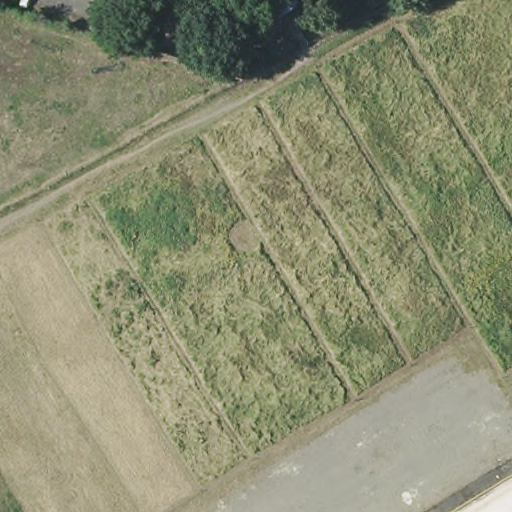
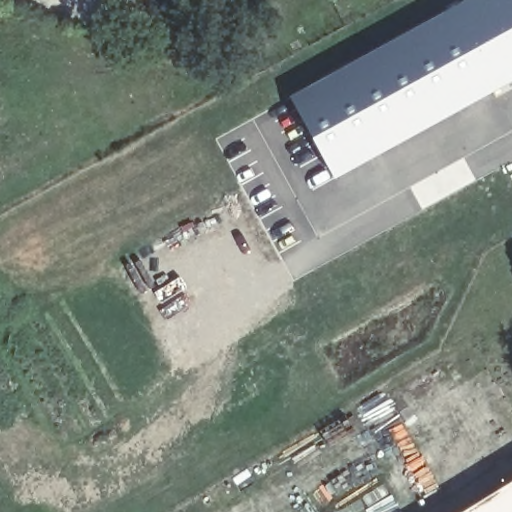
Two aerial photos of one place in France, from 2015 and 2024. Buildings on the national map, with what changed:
new [(461,0),(512,0),(512,80),(334,179),(287,95),(461,0)]
unchanged [(458,512),(512,478),(512,512),(458,512)]

